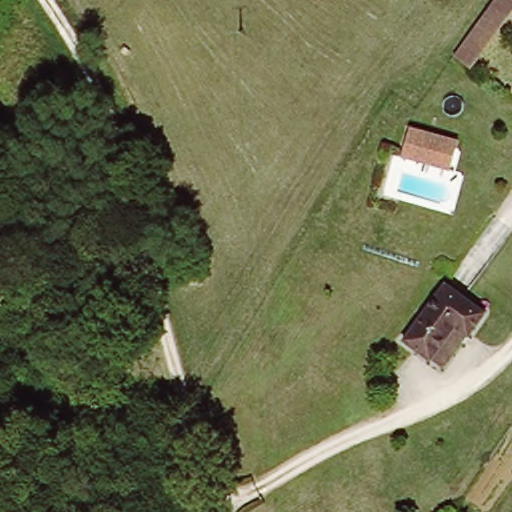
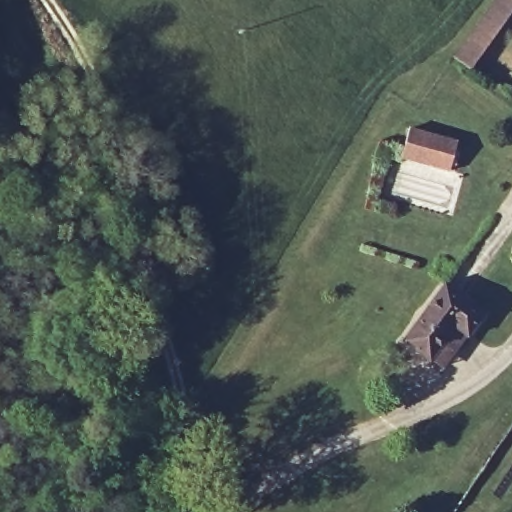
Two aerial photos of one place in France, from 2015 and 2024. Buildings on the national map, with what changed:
unchanged [(512,11),(472,68),(455,56),(495,0),(512,0),(512,11)]
unchanged [(457,138),(449,172),(399,159),(408,125),(457,138)]
unchanged [(426,364),(400,343),(443,287),(484,320),(466,340),(462,337),(441,366),(430,358),(426,364)]

